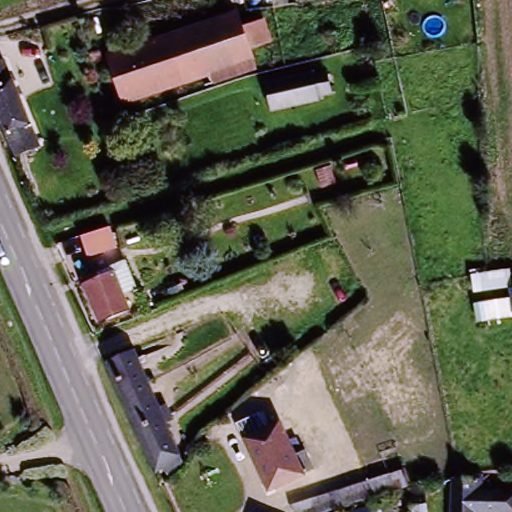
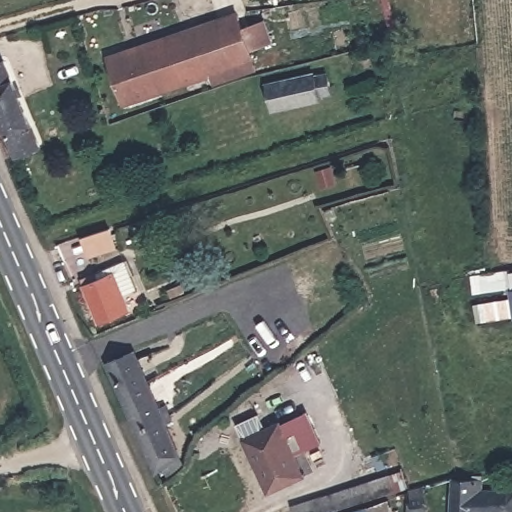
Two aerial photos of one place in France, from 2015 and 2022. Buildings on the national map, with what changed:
unchanged [(152,89),(122,100),(106,54),(213,15),(233,8),(247,47),(227,54),(231,73),(202,80),(199,80),(184,85),(182,79),(152,89)]
unchanged [(0,63),(5,61),(12,81),(32,126),(41,148),(20,156),(12,134),(0,106),(0,63)]
unchanged [(268,81),(292,75),(314,70),(315,77),(328,73),(332,87),(317,91),(319,96),(298,100),(273,106),(268,81)]
unchanged [(101,253),(97,241),(124,233),(127,244),(101,253)]
unchanged [(130,261),(140,288),(120,297),(125,312),(99,322),(84,284),(103,279),(101,271),(109,269),(130,261)]
unchanged [(496,269),(497,281),(475,285),(472,273),(496,269)]
unchanged [(157,471),(109,365),(134,354),(142,349),(153,378),(146,381),(177,455),(157,471)]
unchanged [(266,386),(274,394),(265,406),(257,399),(266,386)]
unchanged [(302,471),(269,486),(244,437),(276,420),(302,471)]
unchanged [(393,483),(338,501),(305,512),(295,512),(292,500),(332,487),(389,469),(393,483)]
unchanged [(467,473),(476,474),(475,487),(502,488),(512,489),(512,512),(501,511),(475,509),(466,508),(466,512),(447,512),(447,506),(451,472),(467,473)]
unchanged [(368,512),(355,512),(367,508),(368,512)]

